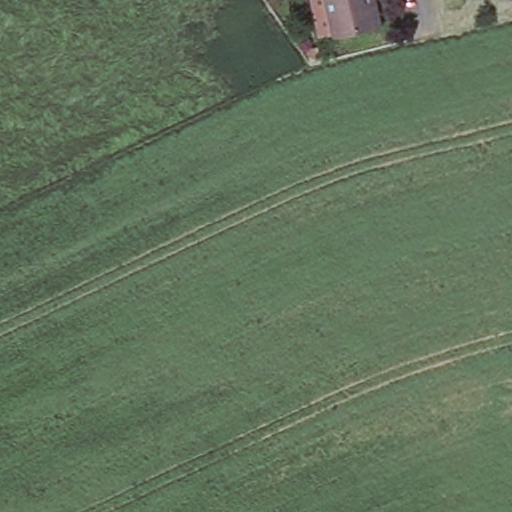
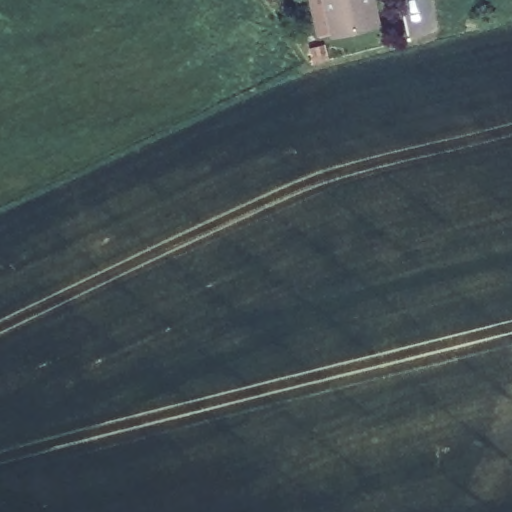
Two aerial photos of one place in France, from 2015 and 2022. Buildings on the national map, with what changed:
unchanged [(386,18),(341,27),(341,26),(326,29),(320,0),(382,0),(386,18)]

